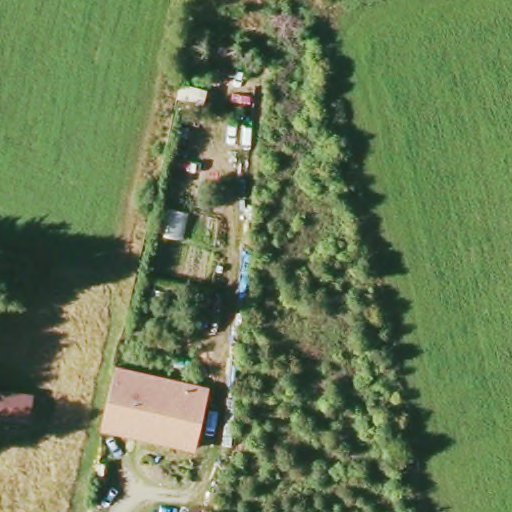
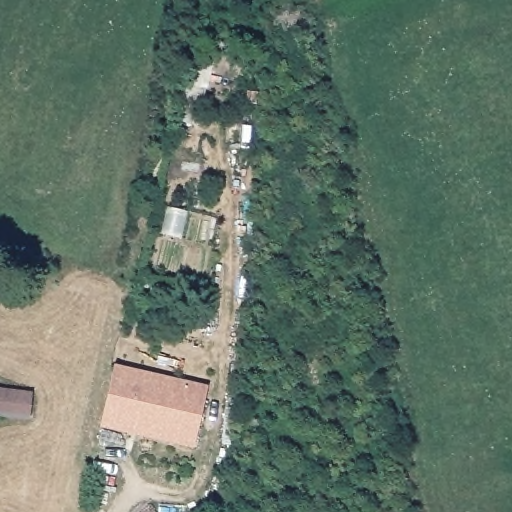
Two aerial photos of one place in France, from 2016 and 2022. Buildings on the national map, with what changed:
unchanged [(98,432),(112,372),(205,393),(194,453),(167,447),(113,435),(98,432)]
unchanged [(0,414),(0,389),(30,394),(27,411),(26,418),(0,414)]

